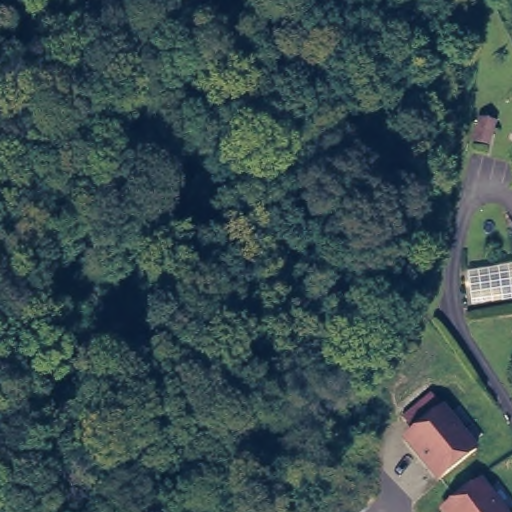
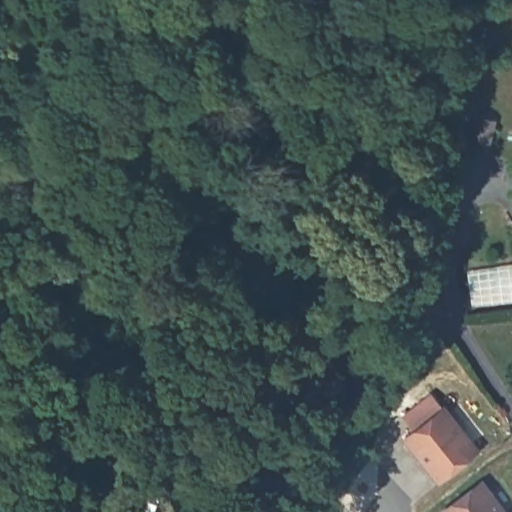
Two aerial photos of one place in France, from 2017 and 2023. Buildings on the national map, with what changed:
unchanged [(437,480),(406,437),(416,430),(405,416),(433,395),(475,451),(437,480)]
unchanged [(443,512),(440,506),(479,480),(502,512),(443,512)]

